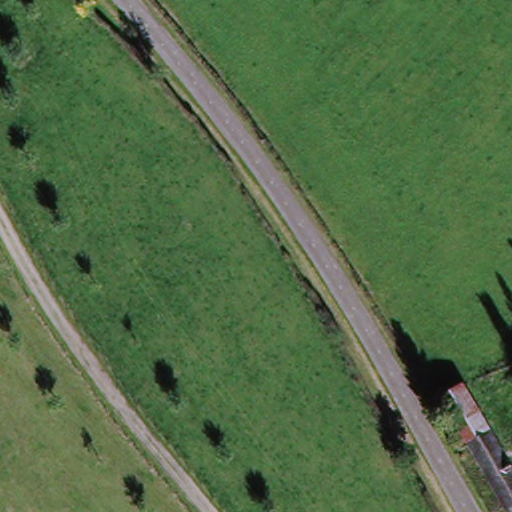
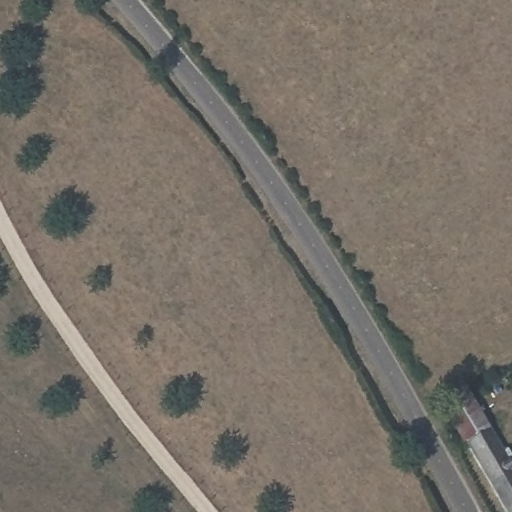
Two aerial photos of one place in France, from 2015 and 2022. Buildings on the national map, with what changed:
unchanged [(465,447),(430,407),(452,387),(487,426),(483,430),(469,443),(465,447)]
unchanged [(483,430),(512,464),(512,496),(469,443),(483,430)]

